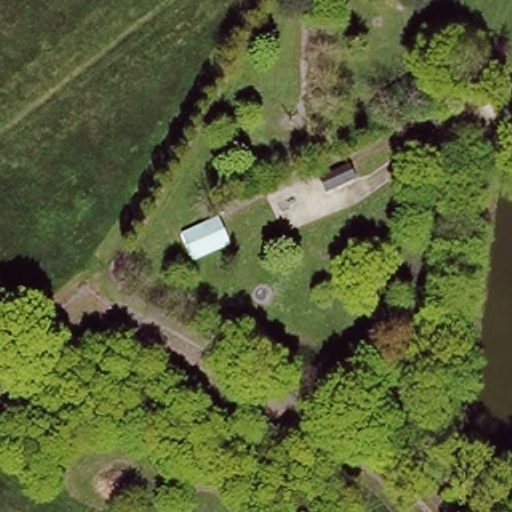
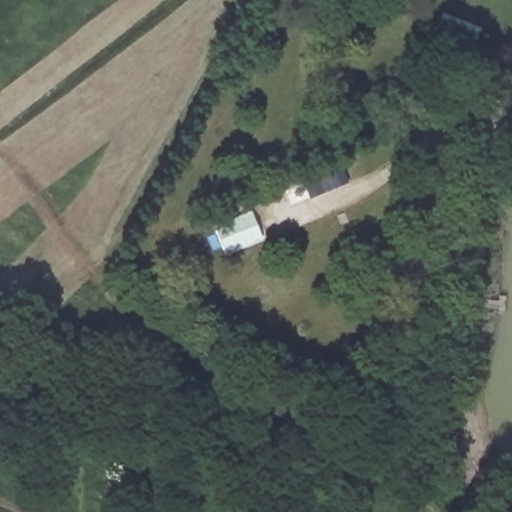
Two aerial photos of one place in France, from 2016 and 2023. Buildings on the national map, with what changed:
unchanged [(326,193),(317,174),(347,161),(353,180),(326,193)]
unchanged [(195,262),(178,231),(218,207),(235,241),(195,262)]

